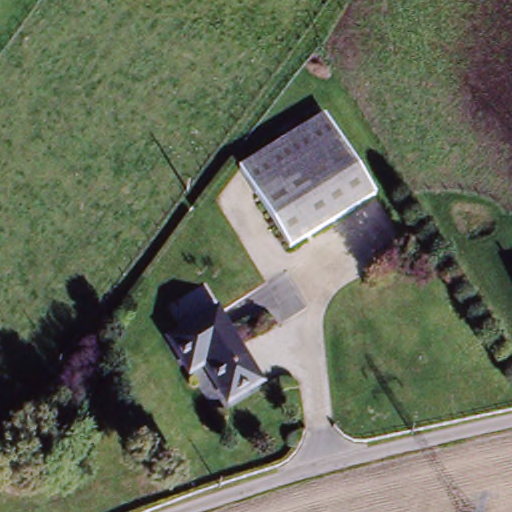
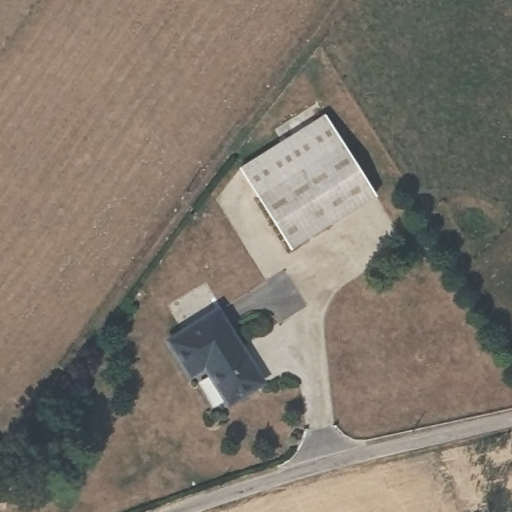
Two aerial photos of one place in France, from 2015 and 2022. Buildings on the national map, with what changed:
unchanged [(328,124),(380,204),(293,257),(242,177),(328,124)]
unchanged [(237,403),(212,366),(195,377),(176,347),(222,316),(267,383),(237,403)]

